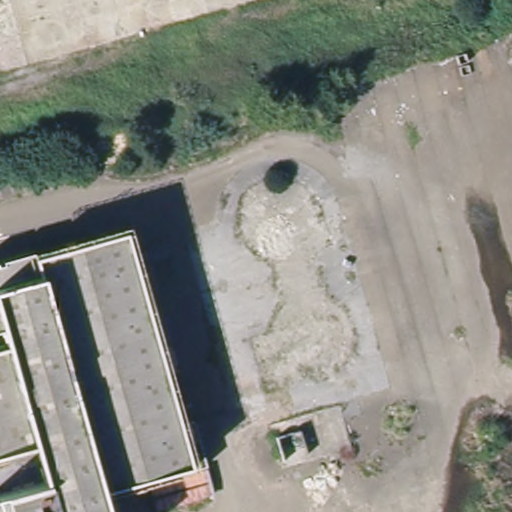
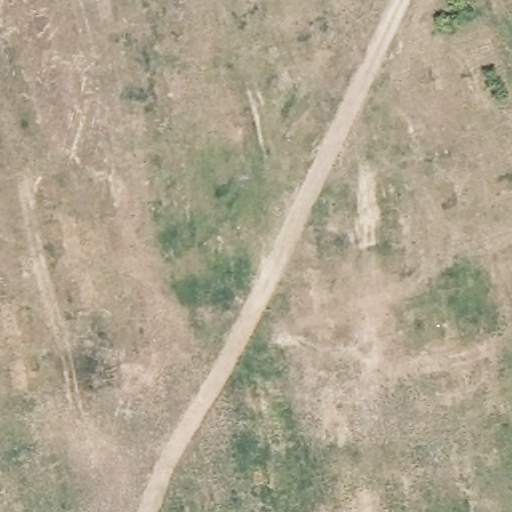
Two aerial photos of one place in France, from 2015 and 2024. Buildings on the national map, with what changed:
demolished [(127,404),(97,306),(95,287),(83,248),(90,246),(90,244),(85,228),(130,215),(135,230),(155,294),(191,410),(186,412),(167,417),(177,451),(115,470),(123,493),(91,510),(75,456),(138,436),(127,404)]
demolished [(14,312),(9,312),(0,285),(0,254),(45,240),(49,258),(63,254),(76,250),(83,248),(95,287),(97,306),(127,404),(138,436),(75,456),(91,510),(123,493),(128,507),(111,512),(18,512),(8,477),(64,461),(54,427),(0,443),(0,337),(20,331),(14,312)]

